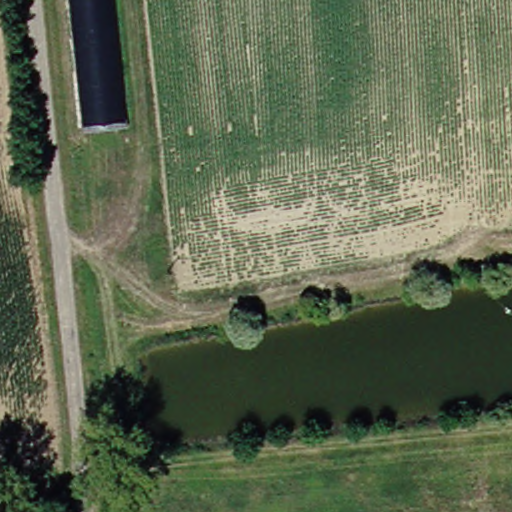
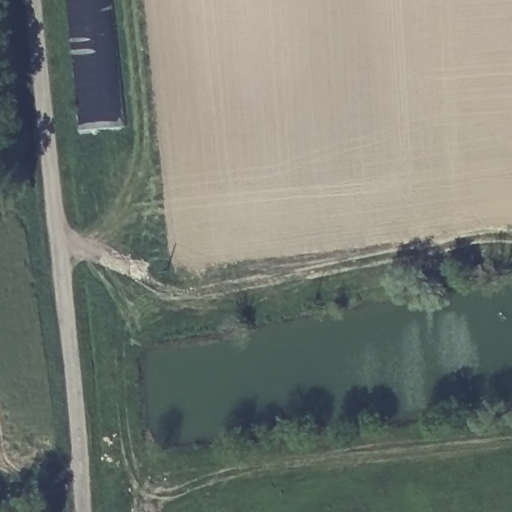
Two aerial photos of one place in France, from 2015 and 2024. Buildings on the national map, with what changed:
unchanged [(61,0),(104,0),(117,130),(75,133),(61,0)]

